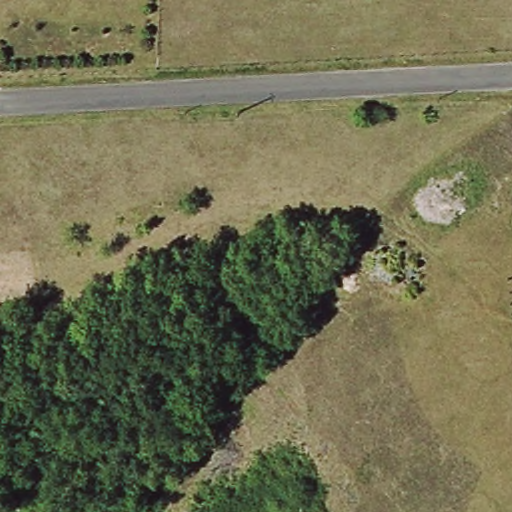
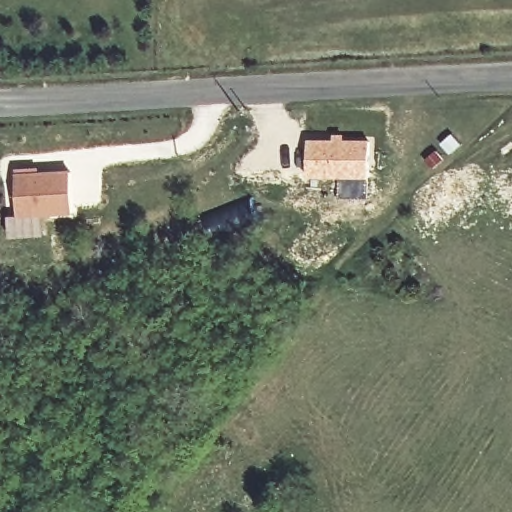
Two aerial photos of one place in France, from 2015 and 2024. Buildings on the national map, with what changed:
new [(333,140),(333,135),(345,136),(346,140),(368,140),(369,179),(309,180),(310,140),(333,140)]
new [(75,215),(20,217),(18,175),(70,172),(75,215)]

